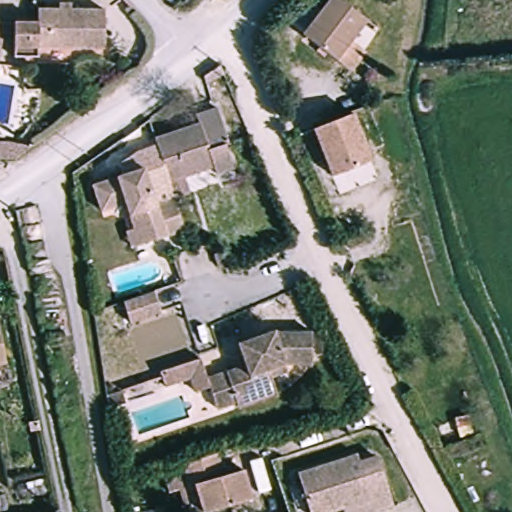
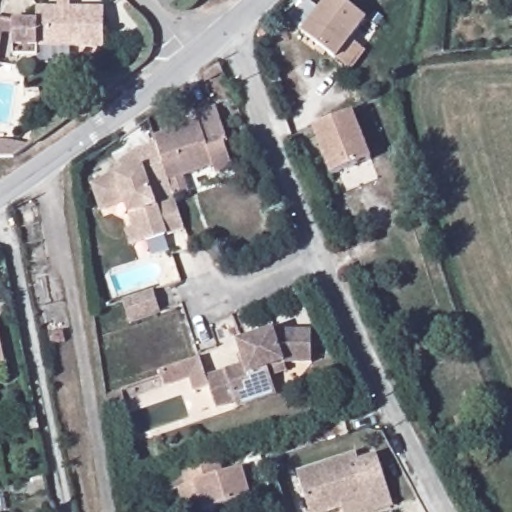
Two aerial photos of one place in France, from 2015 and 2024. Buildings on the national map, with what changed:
unchanged [(337,60),(305,34),(332,0),(351,0),(372,17),(337,60)]
unchanged [(12,24),(35,24),(35,11),(102,11),(103,49),(68,49),(36,49),(36,59),(12,60),(12,24)]
unchanged [(264,23),(270,33),(262,39),(255,29),(264,23)]
unchanged [(197,121),(196,114),(217,107),(229,141),(225,143),(231,163),(215,169),(214,166),(167,181),(151,137),(197,121)]
unchanged [(371,158),(333,173),(315,128),(353,112),(371,158)]
unchanged [(34,135),(35,135),(13,149),(0,150),(0,132),(34,135)]
unchanged [(126,231),(132,229),(124,204),(103,211),(94,185),(142,169),(154,201),(172,196),(185,229),(150,242),(132,248),(126,231)]
unchanged [(161,313),(128,327),(119,309),(153,295),(161,313)]
unchanged [(0,383),(0,328),(4,353),(9,380),(0,383)]
unchanged [(238,404),(218,411),(208,385),(195,389),(190,378),(166,387),(162,374),(198,359),(205,377),(245,363),(239,341),(265,330),(308,328),(310,353),(310,357),(301,358),(285,360),(287,371),(274,377),(279,394),(240,409),(238,404)]
unchanged [(350,501),(306,512),(295,469),(355,453),(358,462),(379,456),(392,503),(373,509),(361,512),(353,512),(350,501)]
unchanged [(224,457),(228,475),(245,471),(252,501),(208,512),(204,512),(197,487),(190,489),(185,468),(224,457)]

